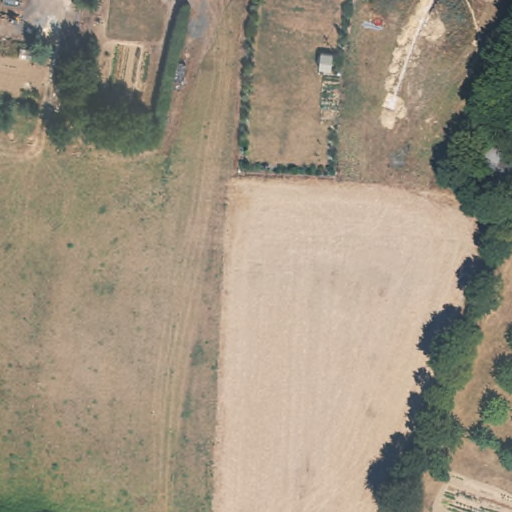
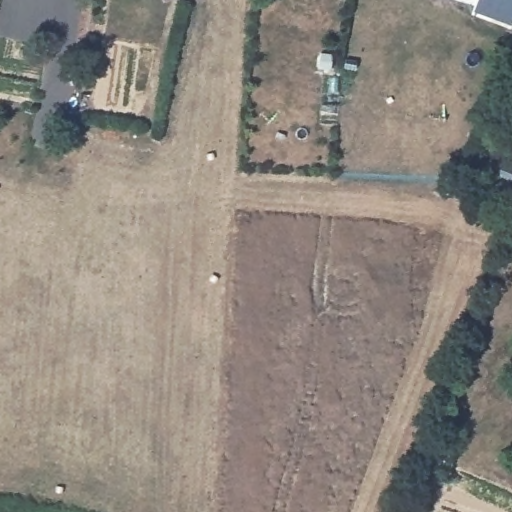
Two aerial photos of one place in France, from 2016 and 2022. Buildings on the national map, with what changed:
new [(512,0),(512,20),(510,25),(473,11),(477,0),(512,0)]
unchanged [(485,145),(507,155),(499,170),(512,174),(512,197),(510,201),(471,181),(485,145)]

